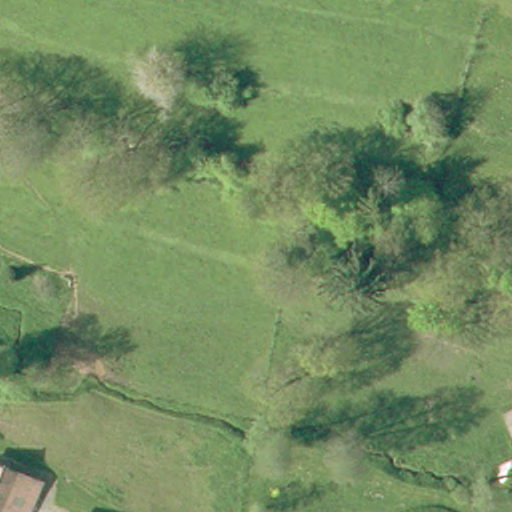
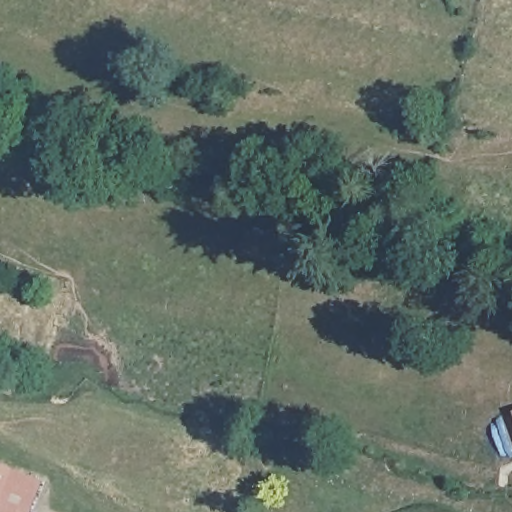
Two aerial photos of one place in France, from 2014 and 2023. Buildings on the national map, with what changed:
unchanged [(512,409),(512,410),(511,409),(512,409)]
unchanged [(0,506),(0,464),(9,468),(0,506)]
unchanged [(2,512),(0,511),(0,506),(9,468),(41,483),(29,512),(2,512)]

